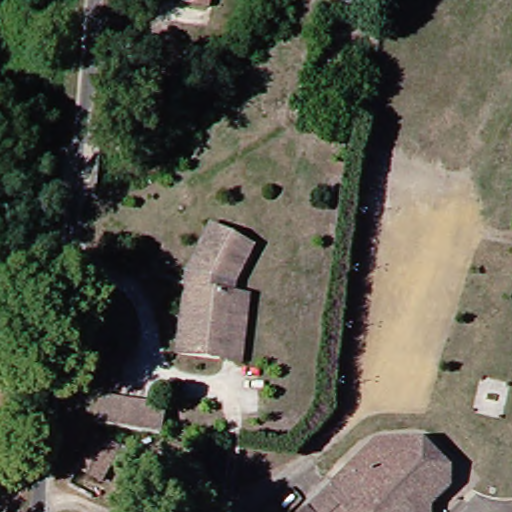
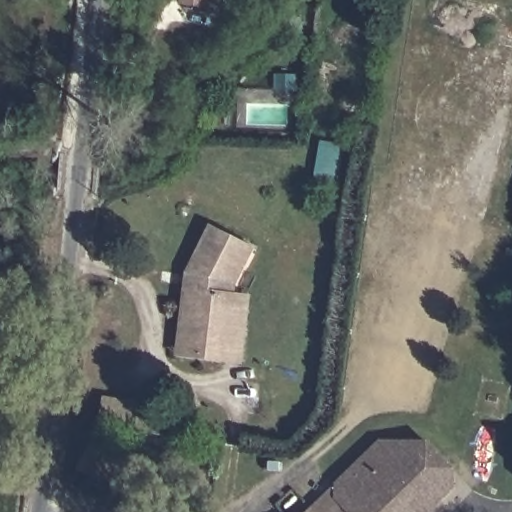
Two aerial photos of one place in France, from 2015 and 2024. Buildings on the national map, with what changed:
unchanged [(211,12),(187,8),(188,0),(211,0),(211,12)]
unchanged [(189,287),(190,268),(195,258),(213,222),(257,244),(238,282),(239,290),(251,293),(244,357),(230,354),(189,350),(181,349),(184,328),(189,287)]
unchanged [(502,372),(498,406),(470,403),(468,403),(472,369),(489,370),(502,372)]
unchanged [(109,397),(170,404),(167,433),(105,424),(109,397)]
unchanged [(124,445),(99,494),(75,481),(100,431),(124,445)]
unchanged [(340,497),(340,482),(380,439),(427,440),(450,462),(453,465),(453,485),(437,500),(435,512),(343,512),(348,506),(340,497)]
unchanged [(315,512),(310,512),(313,509),(315,512)]

